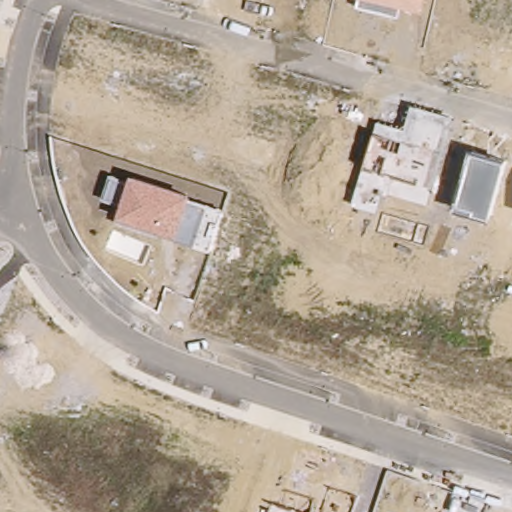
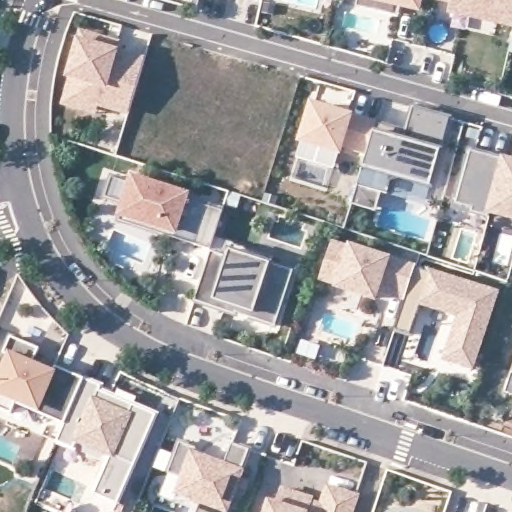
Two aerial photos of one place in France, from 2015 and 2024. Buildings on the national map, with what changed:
unchanged [(423,0),(421,10),(401,5),(399,16),(356,6),(357,0),(423,0)]
new [(451,2),(439,0),(512,0),(512,26),(449,12),(451,2)]
new [(128,115),(99,107),(97,116),(62,104),(69,79),(66,79),(80,30),(122,42),(120,50),(145,57),(128,115)]
new [(377,119),(366,155),(345,147),(343,156),(297,144),(311,101),(377,119)]
unchanged [(377,119),(405,128),(411,106),(454,117),(434,186),(393,174),(388,196),(380,193),(376,211),(352,204),(377,119)]
unchanged [(471,148),(505,158),(488,220),(453,210),(471,148)]
new [(490,214),(505,158),(512,160),(512,221),(490,214)]
unchanged [(117,217),(120,206),(102,198),(110,173),(128,180),(130,172),(191,193),(189,199),(223,209),(211,249),(115,221),(117,217)]
new [(210,251),(228,257),(232,244),(273,257),(271,263),(294,271),(276,326),(239,314),(241,308),(215,300),(213,307),(194,301),(210,251)]
unchanged [(378,290),(375,298),(338,286),(339,284),(323,278),(335,244),(351,249),(352,246),(416,267),(405,298),(386,292),(378,289),(378,290)]
new [(497,293),(477,355),(418,337),(426,312),(403,304),(405,298),(416,267),(497,293)]
new [(85,377),(65,423),(15,402),(11,413),(0,409),(0,375),(8,356),(3,353),(11,336),(40,347),(34,362),(54,371),(56,366),(85,377)]
new [(105,386),(104,388),(116,394),(119,388),(138,397),(136,402),(161,413),(120,507),(92,493),(109,456),(76,442),(73,451),(56,444),(65,423),(85,377),(105,386)]
new [(197,447),(194,454),(205,458),(224,465),(232,443),(250,450),(226,512),(197,512),(202,502),(178,492),(178,495),(163,490),(169,473),(180,442),(197,447)]
unchanged [(270,503),(277,505),(283,490),(314,500),(311,508),(321,512),(329,487),(357,497),(352,512),(267,512),(270,503)]

